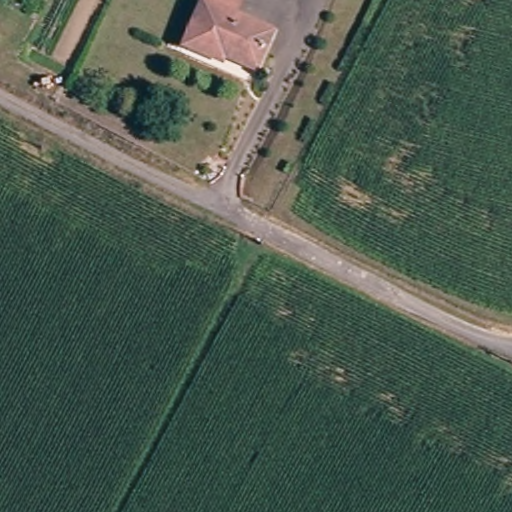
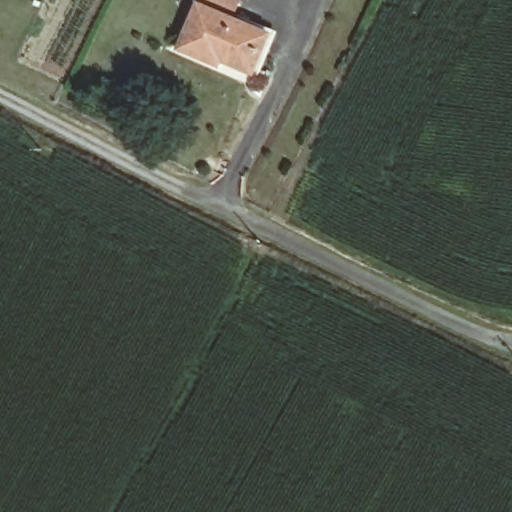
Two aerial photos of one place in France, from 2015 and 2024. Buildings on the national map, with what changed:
unchanged [(32,3),(33,0),(43,0),(39,7),(32,3)]
unchanged [(222,57),(219,63),(182,44),(201,4),(203,0),(236,0),(230,16),(270,33),(250,70),(222,57)]

